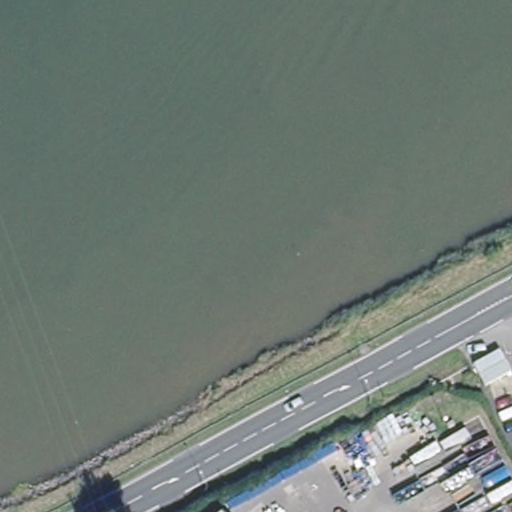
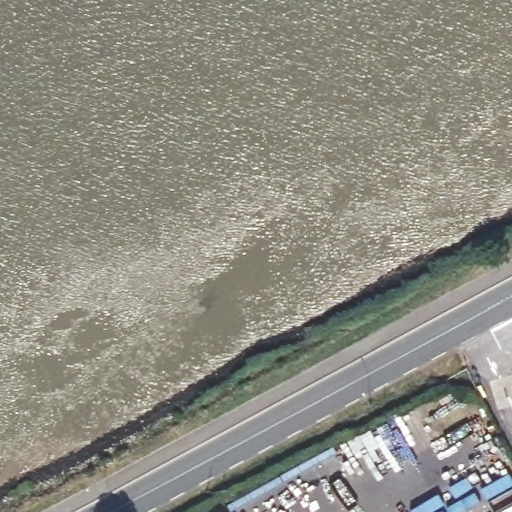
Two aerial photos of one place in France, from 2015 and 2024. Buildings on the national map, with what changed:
unchanged [(512,370),(512,371),(484,384),(474,366),(502,350),(512,370)]

